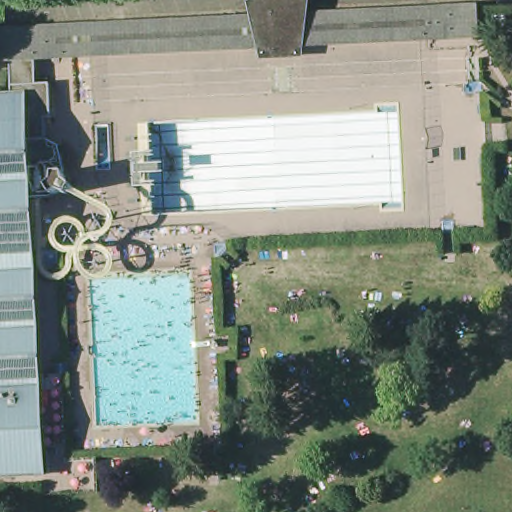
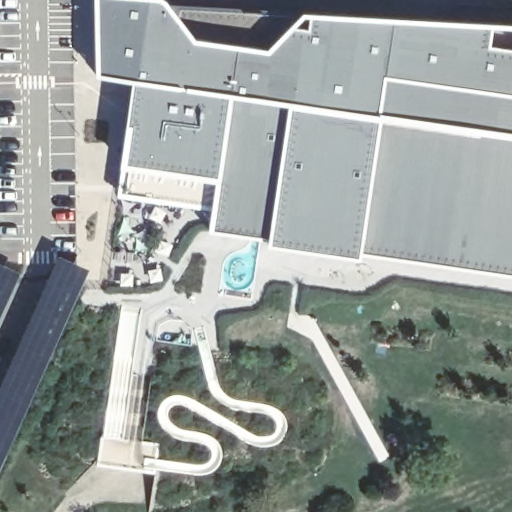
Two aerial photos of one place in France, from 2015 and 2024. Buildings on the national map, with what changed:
new [(132,80),(96,75),(95,0),(168,0),(171,5),(298,16),(303,11),(512,23),(512,275),(362,254),(362,259),(267,245),(268,240),(208,232),(212,210),(117,195),(120,167),(132,80)]
demolished [(53,120),(48,120),(49,141),(29,143),(27,116),(27,97),(13,98),(12,63),(0,63),(0,32),(15,31),(260,21),(258,8),(274,5),(292,4),(306,5),(305,19),(480,10),(482,40),(302,49),(302,56),(267,58),(267,51),(37,61),(38,86),(52,86),(53,120)]
demolished [(481,85),(481,94),(464,94),(464,86),(481,85)]
demolished [(27,97),(27,116),(29,143),(34,252),(42,446),(68,445),(68,461),(96,459),(97,494),(45,496),(44,476),(0,478),(0,98),(13,98),(27,97)]
demolished [(142,166),(139,166),(139,173),(143,172),(145,214),(115,217),(113,165),(98,166),(97,126),(112,125),(142,124),(142,166)]
demolished [(456,224),(457,232),(445,232),(445,224),(456,224)]
demolished [(227,248),(227,259),(216,259),(215,248),(227,248)]
demolished [(59,252),(59,264),(47,265),(46,252),(59,252)]
demolished [(68,363),(68,374),(57,374),(57,364),(68,363)]
new [(155,472),(97,464),(101,435),(159,443),(155,472)]
demolished [(220,449),(220,461),(210,461),(209,449),(220,449)]

